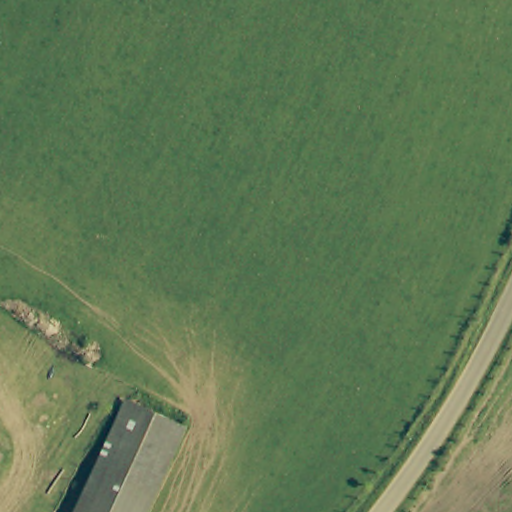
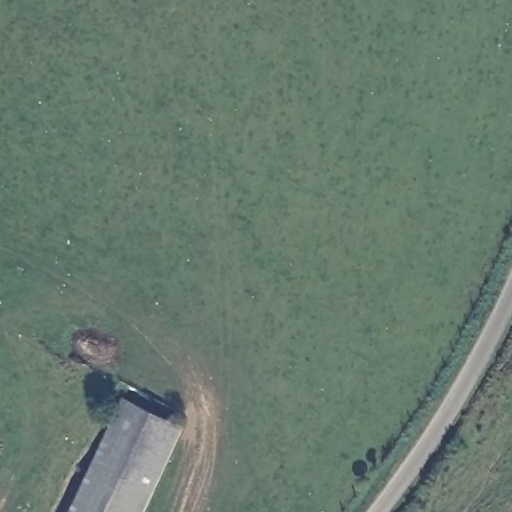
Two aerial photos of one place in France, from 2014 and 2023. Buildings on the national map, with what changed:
unchanged [(174,424),(139,512),(84,512),(128,402),(174,424)]

